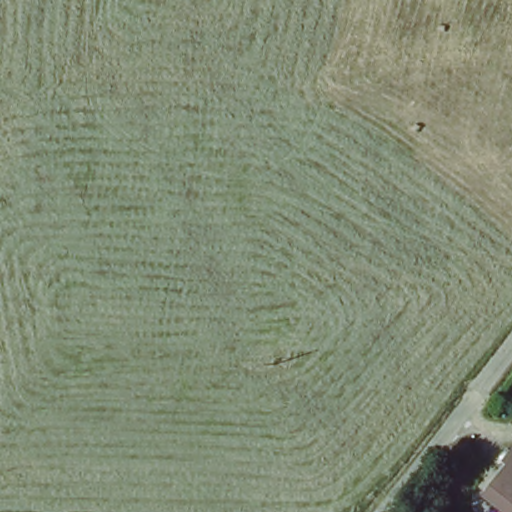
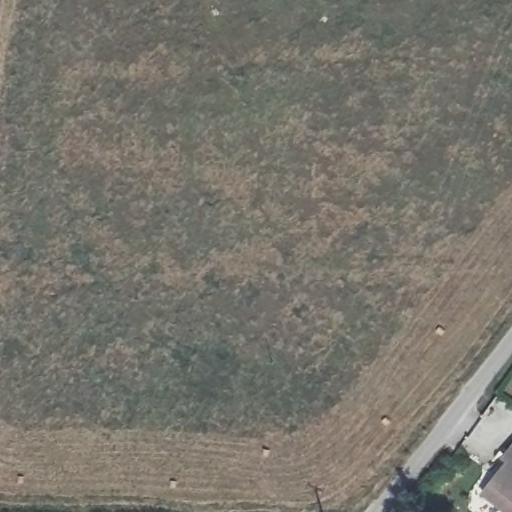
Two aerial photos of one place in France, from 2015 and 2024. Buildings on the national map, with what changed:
unchanged [(472,489),(497,460),(494,456),(512,436),(512,512),(501,512),(472,489)]

